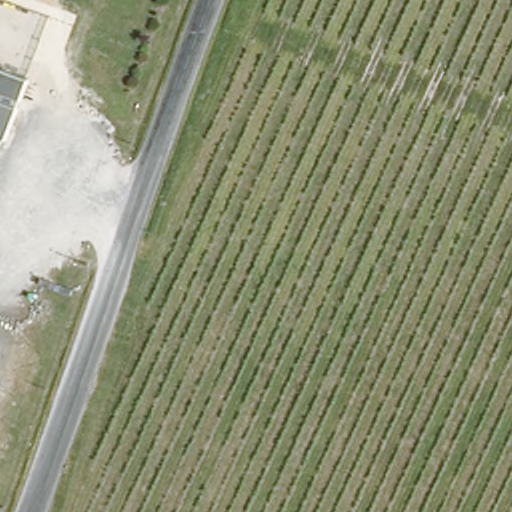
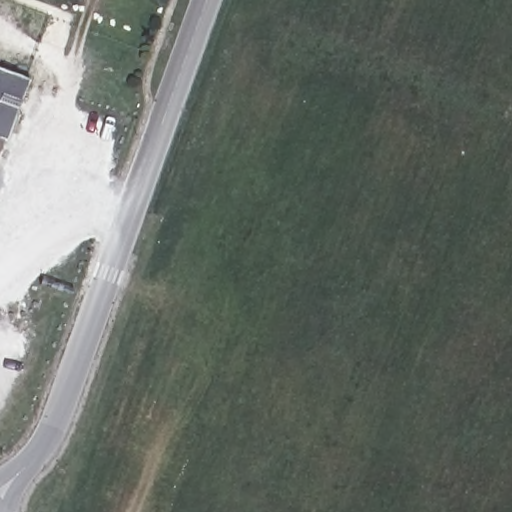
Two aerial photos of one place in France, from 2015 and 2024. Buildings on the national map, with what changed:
unchanged [(0,134),(0,64),(32,75),(25,94),(19,110),(8,138),(0,134)]
unchanged [(8,138),(0,158),(0,134),(8,138)]

